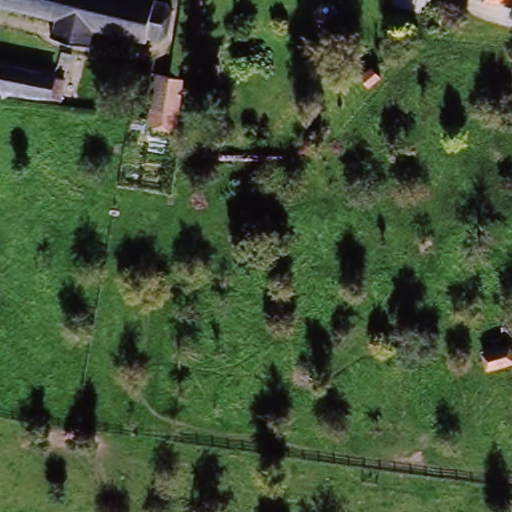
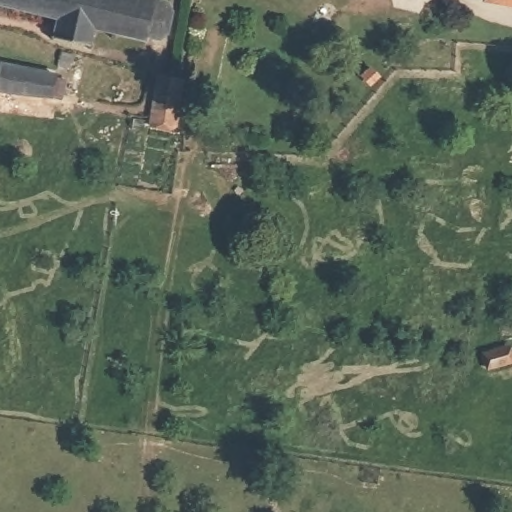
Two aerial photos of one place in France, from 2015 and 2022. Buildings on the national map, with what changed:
unchanged [(157,1),(174,14),(170,38),(151,41),(93,28),(89,49),(54,40),(58,20),(0,5),(0,0),(151,0),(157,1)]
unchanged [(482,1),(482,0),(512,0),(512,6),(482,1)]
unchanged [(0,62),(51,73),(48,93),(0,87),(0,62)]
unchanged [(184,81),(178,134),(149,129),(156,75),(184,81)]

